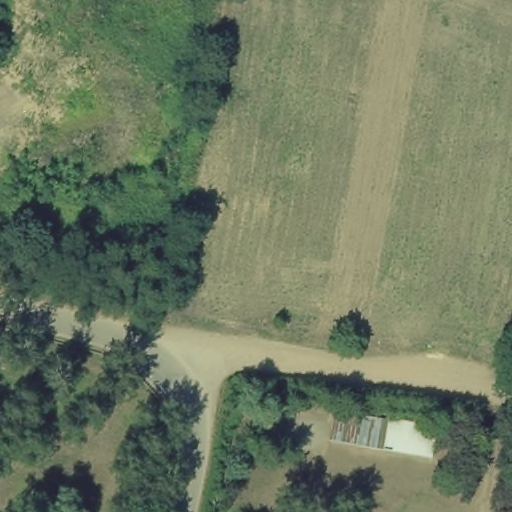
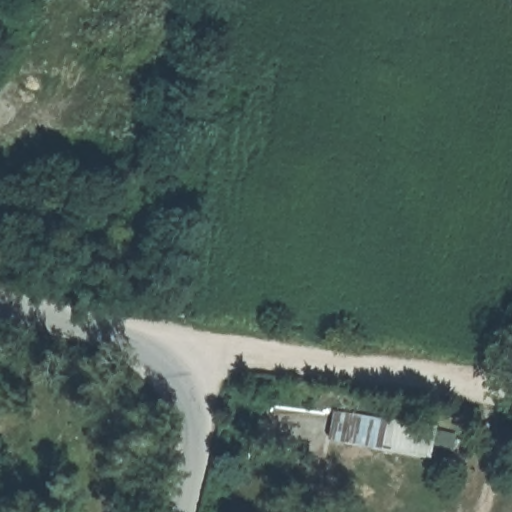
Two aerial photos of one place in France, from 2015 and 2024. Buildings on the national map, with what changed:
unchanged [(429,458),(331,439),(338,412),(436,428),(429,458)]

